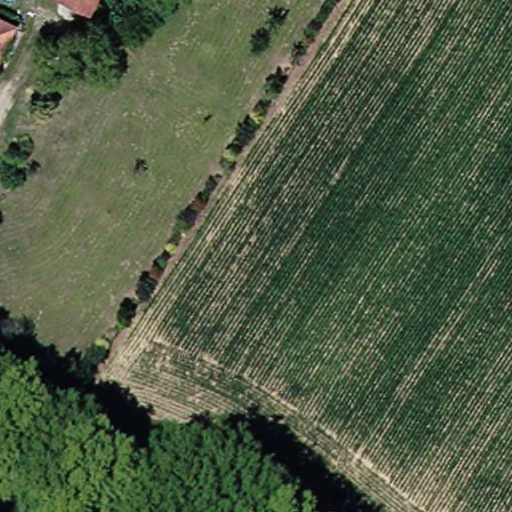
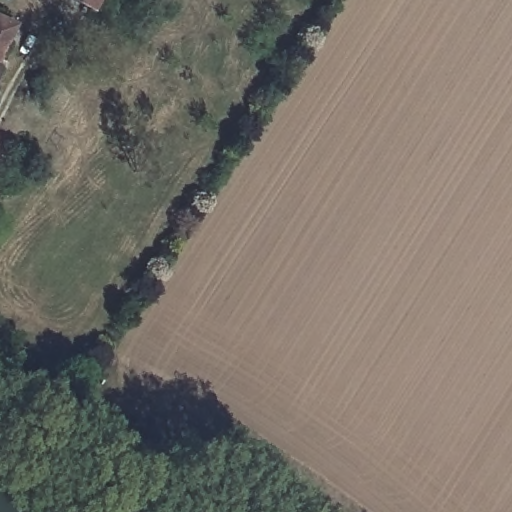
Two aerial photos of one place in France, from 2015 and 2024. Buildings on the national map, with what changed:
unchanged [(78,5),(68,0),(80,0),(78,5)]
unchanged [(0,37),(0,12),(9,17),(0,37)]

